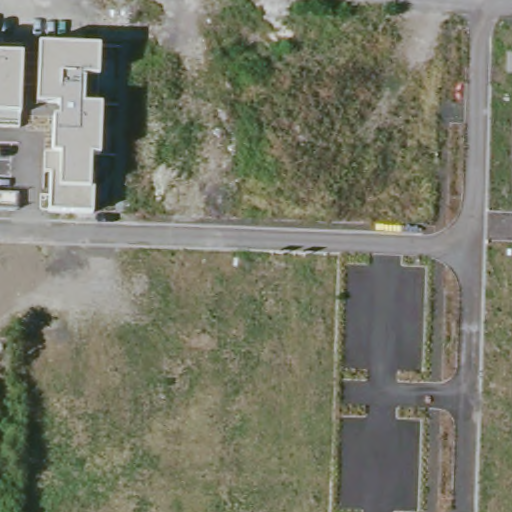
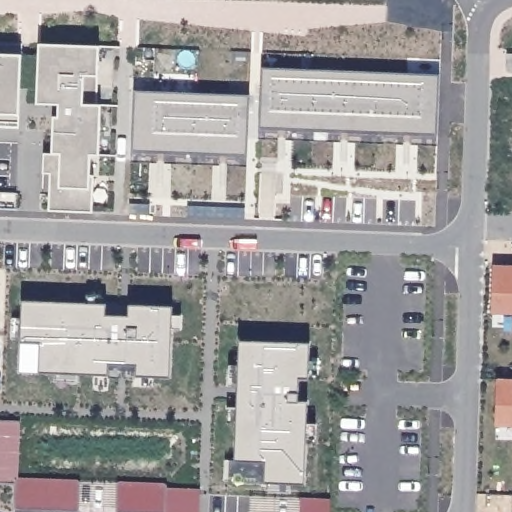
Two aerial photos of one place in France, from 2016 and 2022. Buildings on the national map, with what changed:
unchanged [(50,174),(43,174),(44,154),(52,153),(53,118),(59,116),(59,104),(37,104),(38,45),(100,46),(99,76),(95,77),(94,105),(101,106),(99,155),(90,155),(90,179),(94,179),(92,213),(50,210),(50,174)]
unchanged [(0,114),(0,55),(22,56),(20,115),(0,114)]
new [(259,136),(259,126),(254,126),(258,62),(440,69),(439,75),(436,133),(435,144),(259,136)]
new [(135,91),(249,96),(247,156),(247,164),(132,160),(132,152),(135,91)]
new [(17,193),(16,210),(0,209),(0,192),(17,193)]
new [(512,266),(512,314),(492,313),(495,264),(512,266)]
new [(105,305),(172,308),(170,375),(41,372),(42,343),(21,342),(24,299),(105,305)]
new [(309,344),(307,377),(299,376),(298,402),(307,402),(304,483),(265,482),(235,482),(235,460),(240,341),(309,344)]
new [(512,379),(512,427),(495,427),(497,379),(512,379)]
new [(19,421),(17,478),(165,484),(164,512),(109,512),(14,509),(14,484),(0,483),(0,420),(19,421)]

